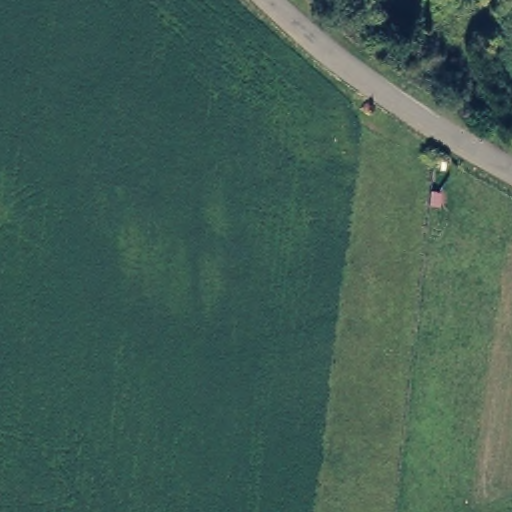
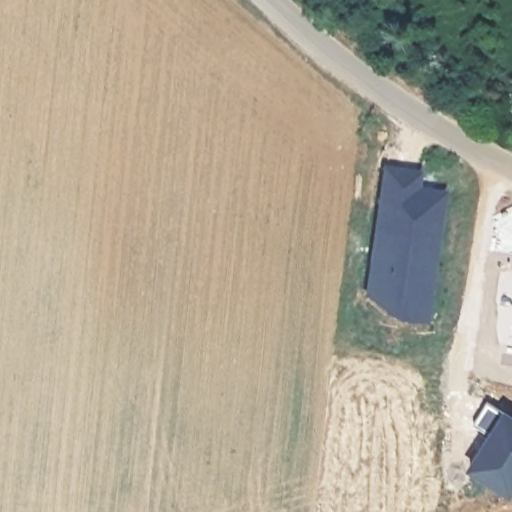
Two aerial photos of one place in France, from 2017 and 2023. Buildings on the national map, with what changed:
new [(384,165),(417,170),(414,185),(441,190),(423,316),(394,312),(397,293),(364,287),(384,165)]

